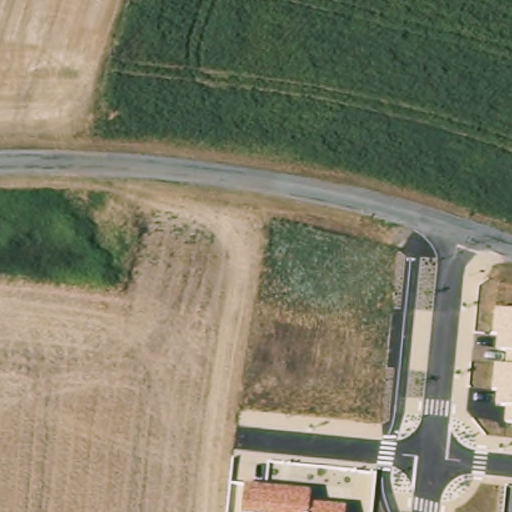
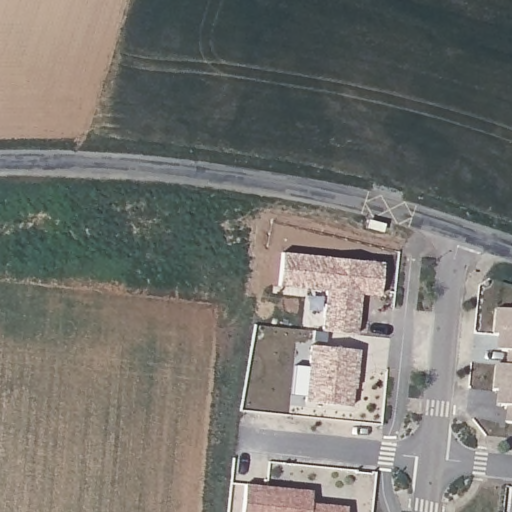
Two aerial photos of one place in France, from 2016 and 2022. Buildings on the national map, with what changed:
new [(384,263),(381,296),(357,294),(356,307),(360,307),(358,335),(323,331),(328,291),(280,286),(283,253),(384,263)]
new [(357,294),(362,294),(360,307),(356,307),(357,294)]
unchanged [(503,423),(505,406),(496,405),(497,393),(491,392),(493,365),(506,366),(508,352),(496,351),(497,335),(493,334),(495,312),(512,314),(512,425),(503,423)]
new [(309,345),(358,350),(353,408),(304,402),(309,345)]
unchanged [(347,507),(346,512),(242,512),(244,484),(311,488),(309,504),(347,507)]

